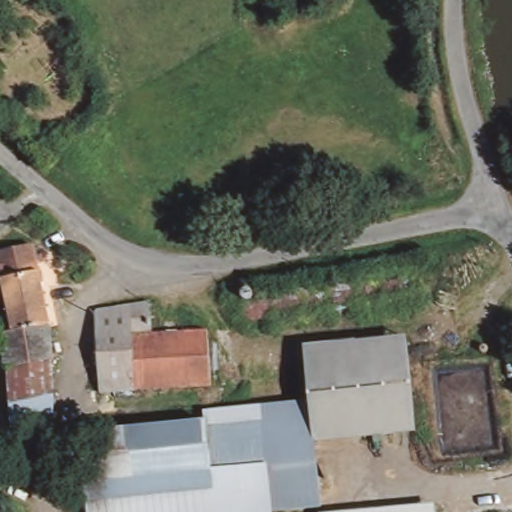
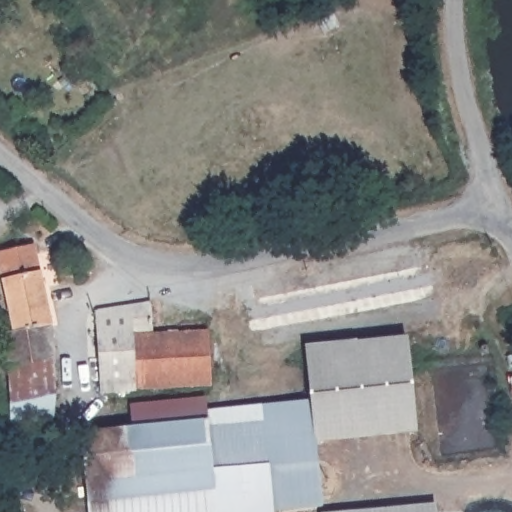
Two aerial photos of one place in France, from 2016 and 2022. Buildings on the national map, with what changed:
unchanged [(38,257),(54,327),(55,337),(59,371),(14,378),(7,332),(21,330),(4,261),(38,257)]
unchanged [(246,306),(433,270),(438,292),(252,327),(246,306)]
unchanged [(160,303),(162,335),(217,331),(221,385),(145,390),(147,408),(120,410),(121,403),(109,404),(102,309),(160,303)]
unchanged [(320,448),(315,407),(310,352),(411,342),(421,438),(320,448)]
unchanged [(61,402),(57,427),(16,434),(14,378),(59,371),(61,402)]
unchanged [(315,407),(320,448),(325,507),(279,512),(87,512),(83,432),(202,421),(201,412),(315,400),(315,407)]
unchanged [(344,512),(435,503),(436,512),(344,512)]

